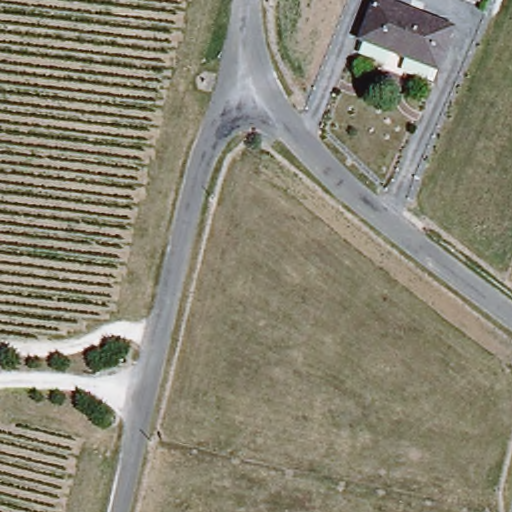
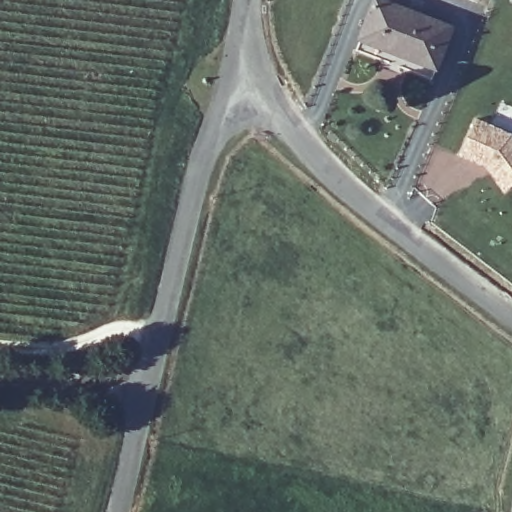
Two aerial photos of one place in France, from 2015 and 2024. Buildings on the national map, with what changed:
unchanged [(428,69),(357,38),(372,0),(375,0),(444,29),(428,69)]
new [(481,2),(474,0),(482,0),(481,2)]
new [(512,135),(512,185),(505,190),(489,166),(463,155),(477,118),(512,135)]

